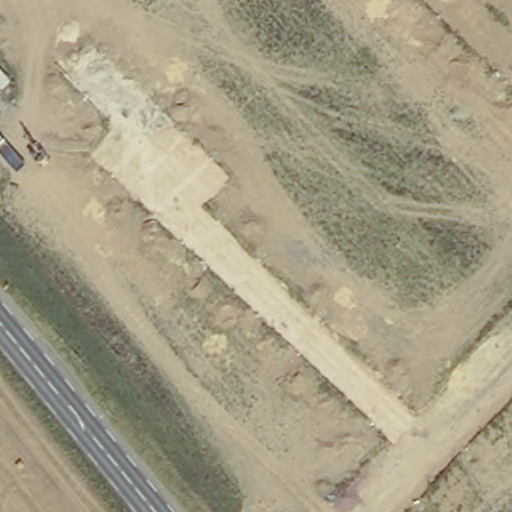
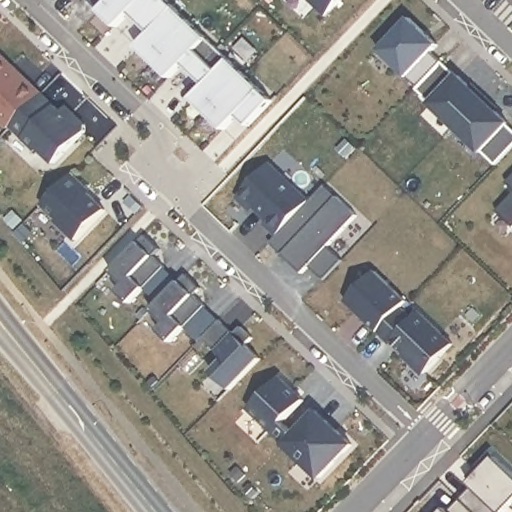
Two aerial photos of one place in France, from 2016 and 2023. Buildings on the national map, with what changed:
new [(82,0),(109,0),(97,13),(82,0)]
new [(235,118),(221,133),(188,101),(202,87),(188,73),(174,87),(145,59),(158,45),(144,31),(130,45),(97,13),(109,0),(164,0),(271,103),(246,129),(235,118)]
new [(305,0),(341,0),(324,18),(305,0)]
new [(415,91),(376,53),(408,19),(437,46),(430,53),(441,63),(415,91)]
new [(8,129),(0,122),(0,57),(40,95),(10,127),(8,129)]
new [(441,63),(455,77),(456,76),(481,100),(452,131),(427,107),(428,106),(413,92),(441,63)]
new [(53,165),(38,150),(36,153),(10,127),(40,95),(65,119),(70,114),(84,127),(84,133),(53,165)]
new [(506,124),(506,125),(512,132),(512,148),(492,168),(478,154),(477,155),(452,131),(481,100),(506,124)]
new [(275,237),(263,226),(267,222),(248,204),(245,208),(235,199),(268,164),(308,202),(275,237)]
new [(74,241),(54,222),(56,219),(42,205),(71,175),(84,188),(82,190),(103,211),(74,241)]
new [(512,177),(512,191),(505,184),(512,177)]
new [(323,186),(335,197),(355,217),(326,247),(340,261),(321,281),(307,267),(300,275),(268,244),(312,198),(323,186)]
new [(512,229),(495,212),(512,195),(512,229)]
new [(158,249),(151,256),(163,267),(128,303),(116,292),(124,285),(110,271),(144,235),(158,249)]
new [(177,281),(156,303),(142,289),(163,267),(177,281)]
new [(343,302),(372,272),(404,303),(375,333),(343,302)]
new [(199,288),(192,295),(203,306),(168,342),(157,331),(164,324),(150,310),(185,274),(199,288)]
new [(217,320),(197,342),(182,328),(203,306),(217,320)]
new [(423,375),(418,375),(409,366),(409,361),(390,343),(388,345),(375,333),(398,310),(409,321),(416,313),(451,346),(423,375)]
new [(258,361),(229,391),(211,374),(223,360),(201,339),(217,322),(231,335),(238,328),(250,340),(243,347),(258,361)]
new [(281,423),(292,433),(283,443),(248,409),(278,378),(302,401),(281,423)]
new [(349,446),(318,478),(282,444),(313,411),(349,446)]
new [(458,500),(470,488),(466,485),(475,475),(471,472),(488,454),(512,477),(512,503),(503,512),(469,512),(458,500)]
new [(458,500),(469,512),(446,512),(458,500)]
new [(442,510),(444,512),(440,512),(442,510)]

